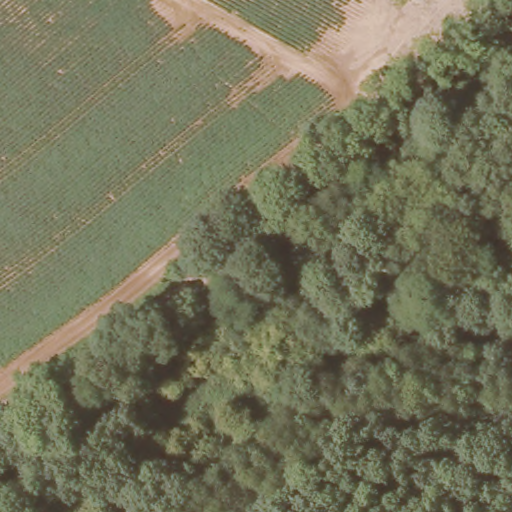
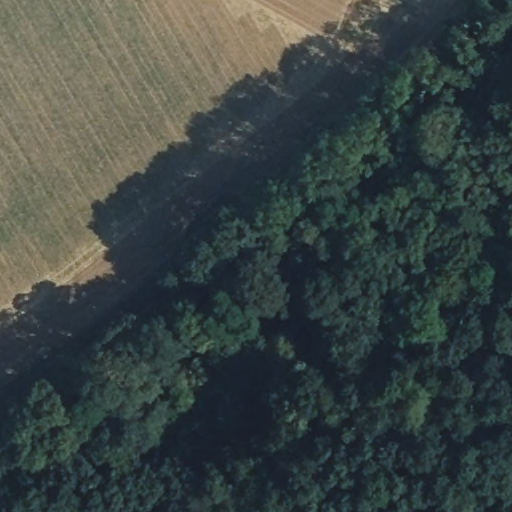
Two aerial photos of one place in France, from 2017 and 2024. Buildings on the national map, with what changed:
[]

